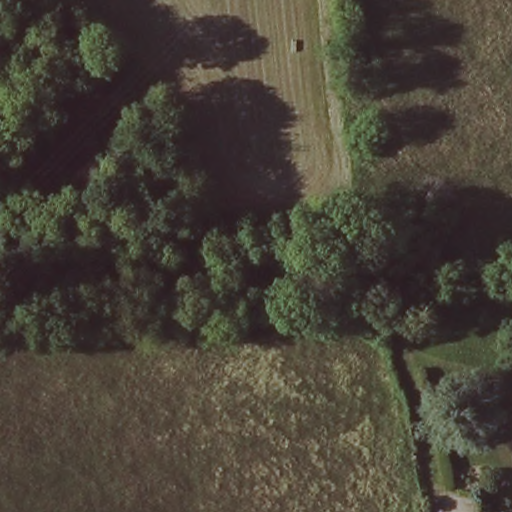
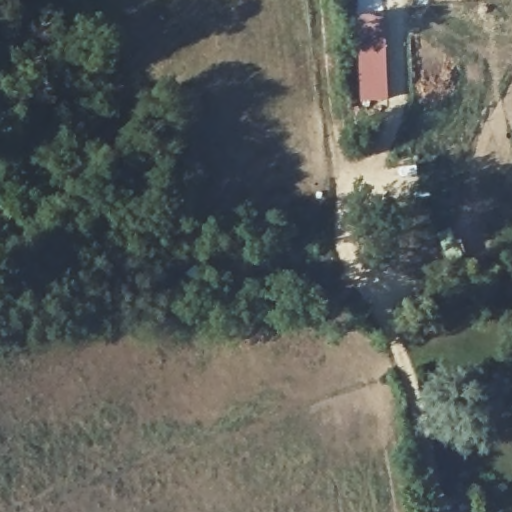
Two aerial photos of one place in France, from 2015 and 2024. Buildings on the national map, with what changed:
new [(361,32),(385,31),(390,100),(366,102),(361,32)]

